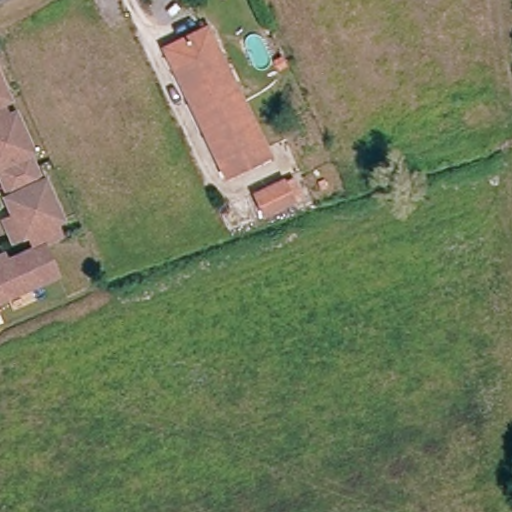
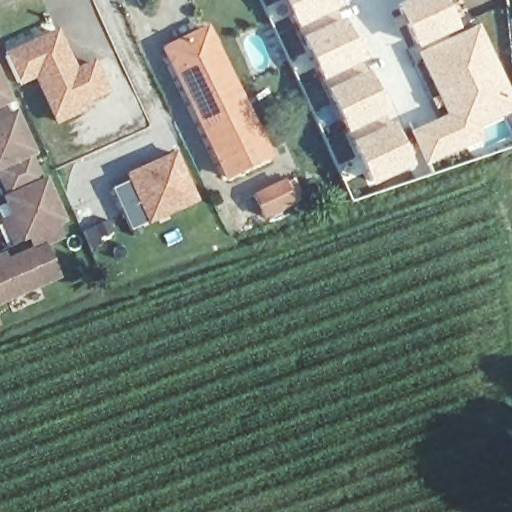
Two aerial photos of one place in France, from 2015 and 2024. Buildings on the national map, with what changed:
new [(413,167),(370,187),(283,0),(334,0),(413,167)]
new [(478,26),(512,97),(512,113),(480,128),(485,139),(423,166),(409,133),(446,116),(416,51),(394,7),(410,0),(445,0),(459,32),(478,26)]
new [(83,106),(86,111),(57,124),(35,79),(19,86),(2,53),(59,27),(78,67),(96,59),(110,92),(83,106)]
unchanged [(206,31),(221,60),(214,64),(230,98),(237,94),(267,156),(227,176),(167,51),(206,31)]
unchanged [(4,108),(0,110),(0,98),(4,108)]
unchanged [(2,125),(10,121),(28,161),(23,163),(30,176),(36,191),(40,189),(58,229),(50,232),(56,245),(29,257),(24,244),(9,250),(0,229),(9,225),(1,207),(5,205),(0,193),(0,119),(2,125)]
new [(123,173),(176,150),(198,201),(147,225),(129,232),(109,188),(126,180),(123,173)]
unchanged [(285,183),(294,203),(265,216),(256,196),(285,183)]
new [(109,218),(116,235),(103,242),(105,246),(91,253),(81,231),(109,218)]
unchanged [(3,261),(6,268),(40,253),(54,284),(0,308),(0,263),(3,261)]

